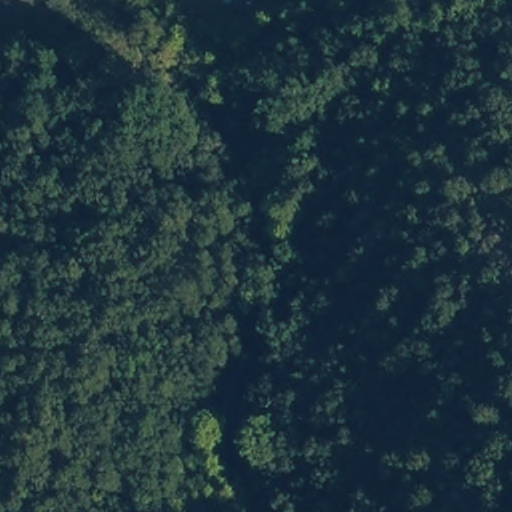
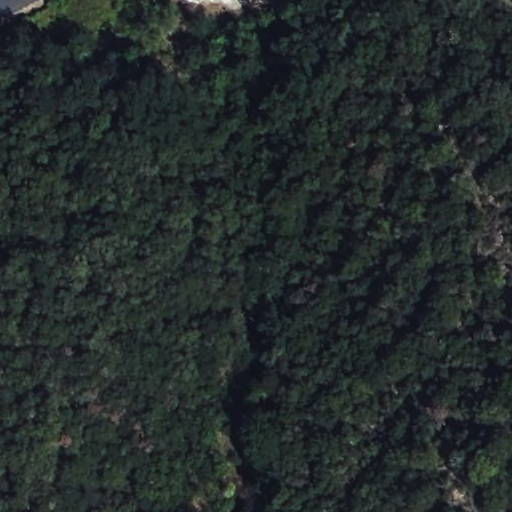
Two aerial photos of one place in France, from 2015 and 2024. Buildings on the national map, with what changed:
[]

